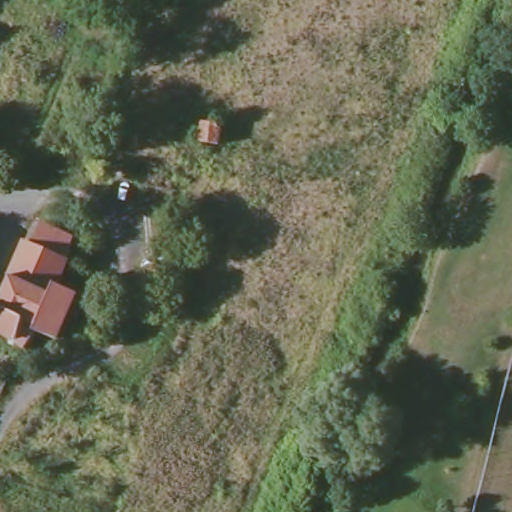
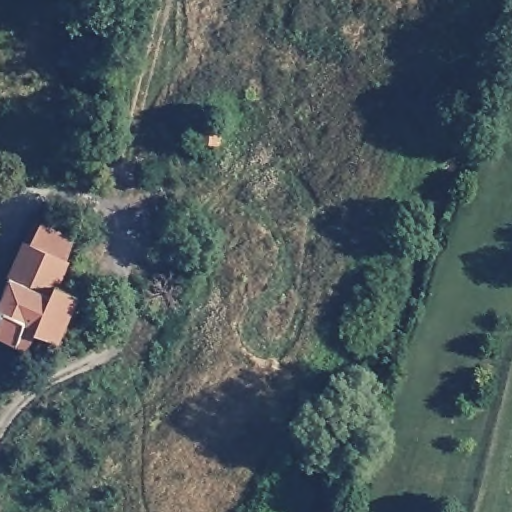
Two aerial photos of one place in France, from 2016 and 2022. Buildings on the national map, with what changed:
unchanged [(72,240),(54,284),(66,290),(77,295),(57,341),(46,337),(32,331),(24,350),(16,346),(13,349),(5,346),(6,342),(0,339),(0,312),(39,225),(72,240)]

